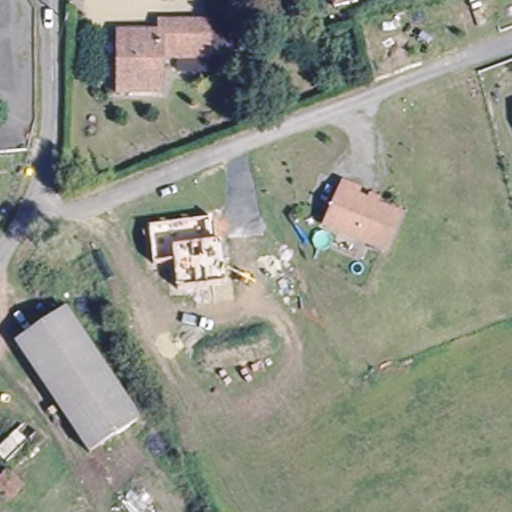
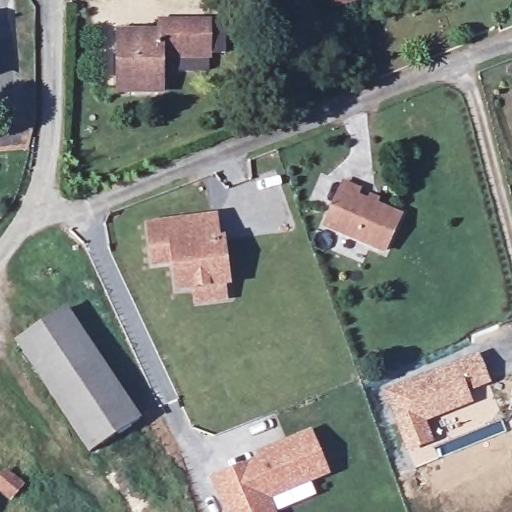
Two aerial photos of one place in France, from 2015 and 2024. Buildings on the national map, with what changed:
unchanged [(117,31),(159,31),(160,18),(207,19),(206,47),(163,45),(162,89),(112,87),(117,31)]
unchanged [(360,190),(358,197),(401,216),(385,252),(326,226),(332,212),(345,182),(360,190)]
new [(145,222),(218,214),(220,239),(227,238),(232,287),(226,288),(228,302),(194,306),(192,291),(174,293),(171,268),(150,269),(145,222)]
unchanged [(12,330),(60,295),(100,350),(53,386),(12,330)]
unchanged [(100,350),(148,414),(100,449),(53,386),(100,350)]
new [(479,360),(488,386),(461,396),(465,407),(423,423),(430,443),(409,451),(387,394),(479,360)]
demolished [(34,401),(26,408),(35,419),(5,450),(0,444),(0,382),(6,375),(34,401)]
new [(256,458),(255,453),(311,429),(331,475),(271,502),(276,512),(224,512),(210,479),(256,458)]
unchanged [(0,483),(0,472),(6,465),(28,484),(19,495),(5,488),(0,483)]

